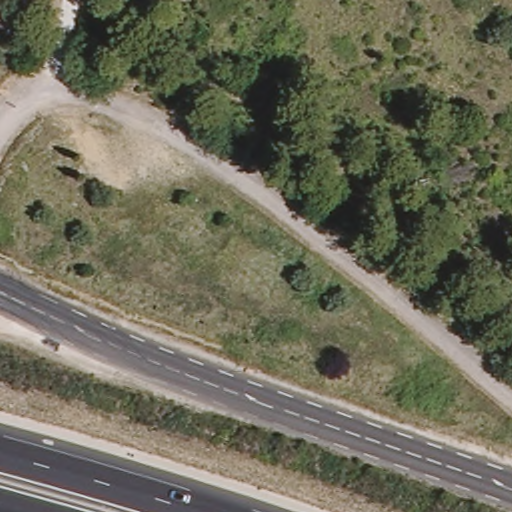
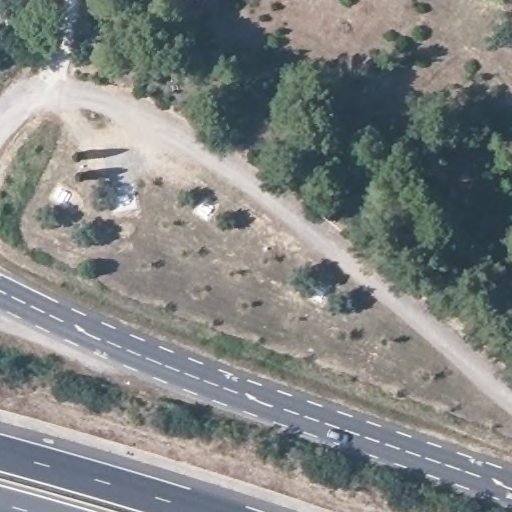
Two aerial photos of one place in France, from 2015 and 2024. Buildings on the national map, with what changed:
[]

